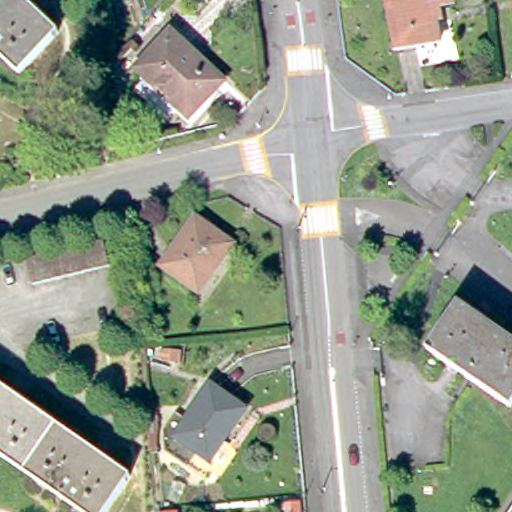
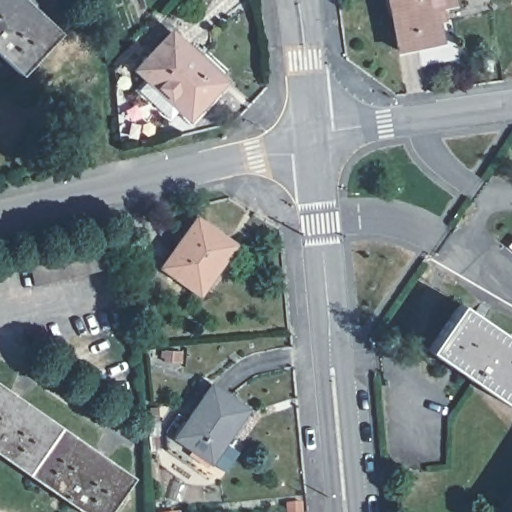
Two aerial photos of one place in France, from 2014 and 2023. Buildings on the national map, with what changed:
unchanged [(0,57),(0,0),(25,0),(59,32),(19,75),(0,57)]
unchanged [(439,8),(446,44),(402,51),(392,0),(457,0),(458,5),(439,8)]
unchanged [(172,117),(139,87),(153,72),(145,65),(175,31),(226,77),(195,111),(185,102),(172,117)]
unchanged [(215,225),(211,230),(233,245),(199,293),(163,267),(200,215),(215,225)]
unchanged [(103,245),(108,271),(31,288),(25,263),(103,245)]
unchanged [(511,407),(428,351),(460,307),(512,343),(512,406),(511,407)]
unchanged [(202,421),(226,385),(261,410),(227,463),(211,452),(202,465),(182,450),(178,429),(191,412),(202,421)]
unchanged [(0,455),(0,386),(132,476),(108,512),(81,512),(0,455)]
unchanged [(163,408),(173,407),(175,450),(165,450),(163,408)]
unchanged [(155,509),(178,506),(178,512),(155,512),(155,509)]

